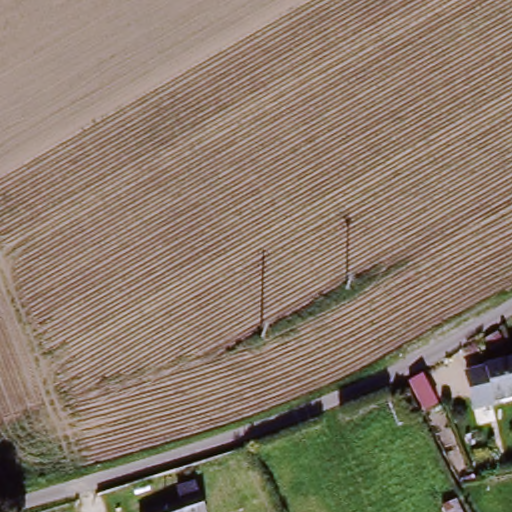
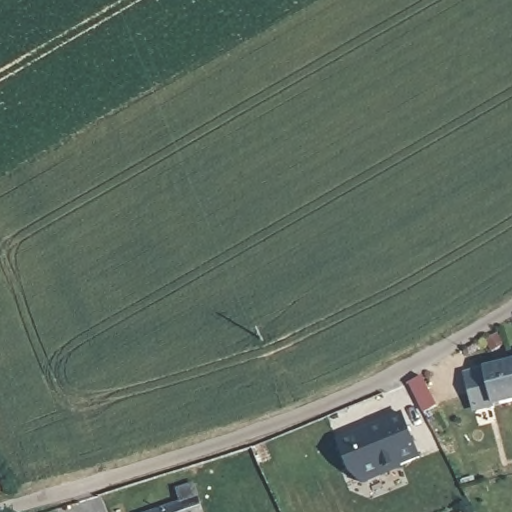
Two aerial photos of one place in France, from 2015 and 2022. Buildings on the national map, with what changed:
unchanged [(512,362),(512,400),(491,404),(491,408),(473,411),(467,370),(512,362)]
new [(424,371),(439,400),(426,407),(410,378),(424,371)]
new [(402,466),(404,469),(362,486),(351,474),(339,440),(402,415),(421,459),(402,466)]
unchanged [(193,488),(204,512),(157,512),(180,503),(176,495),(193,488)]
unchanged [(469,512),(459,512),(466,508),(469,512)]

